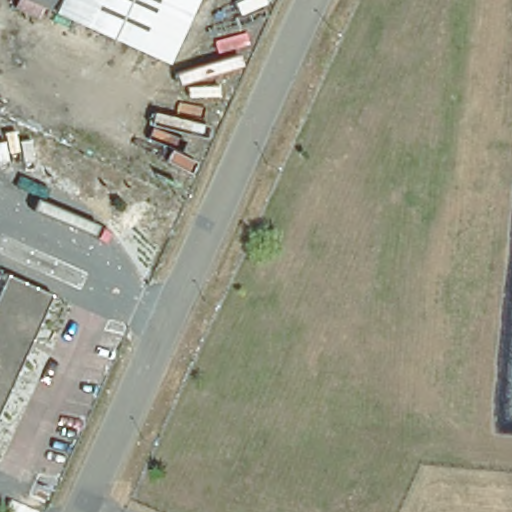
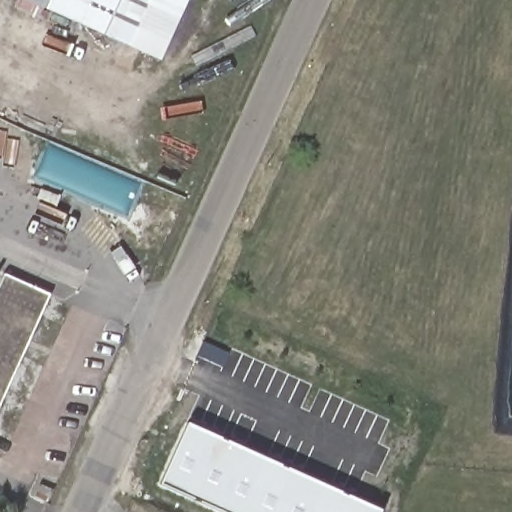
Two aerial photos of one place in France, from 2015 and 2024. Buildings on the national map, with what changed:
unchanged [(14,0),(184,0),(154,66),(14,0)]
demolished [(145,269),(137,286),(126,282),(134,264),(145,269)]
unchanged [(44,298),(0,396),(0,277),(44,298)]
new [(186,423),(381,510),(380,512),(221,512),(158,483),(186,423)]

